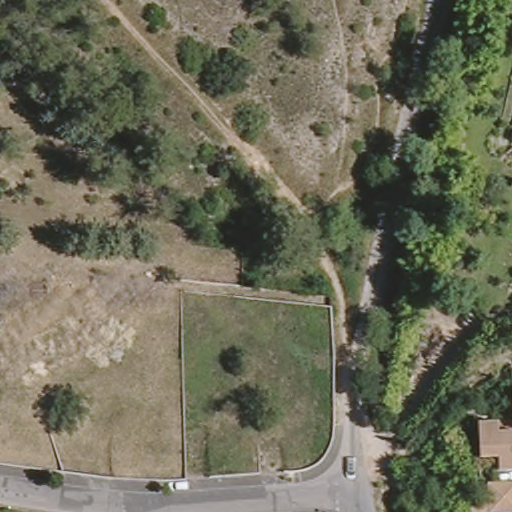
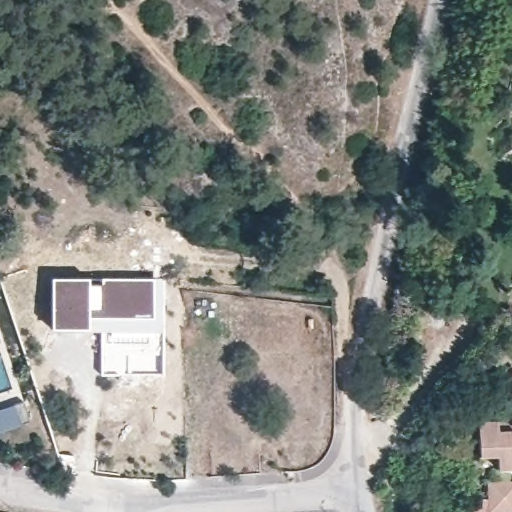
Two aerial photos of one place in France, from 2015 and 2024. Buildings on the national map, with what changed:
new [(50,277),(162,277),(162,374),(100,375),(100,331),(50,330),(50,277)]
unchanged [(507,419),(506,391),(512,391),(512,427),(508,427),(507,419)]
new [(21,403),(27,423),(0,432),(0,409),(21,403)]
unchanged [(508,427),(510,468),(492,468),(492,455),(474,455),(472,421),(507,419),(508,427)]
unchanged [(488,499),(487,485),(512,484),(512,512),(489,512),(488,499)]

